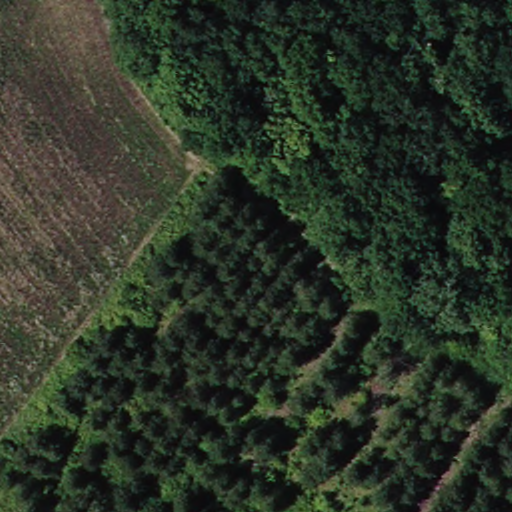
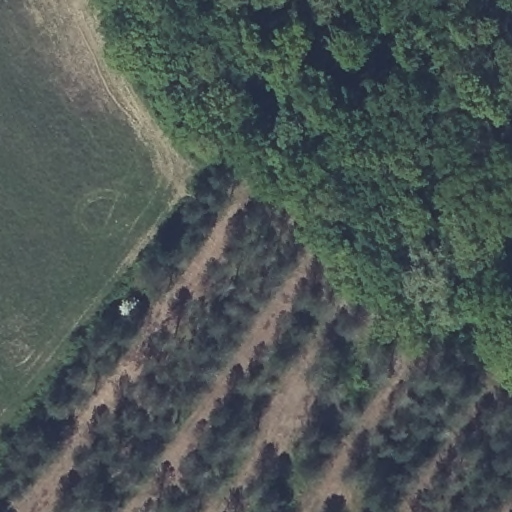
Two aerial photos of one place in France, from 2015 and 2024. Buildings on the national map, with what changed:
[]

